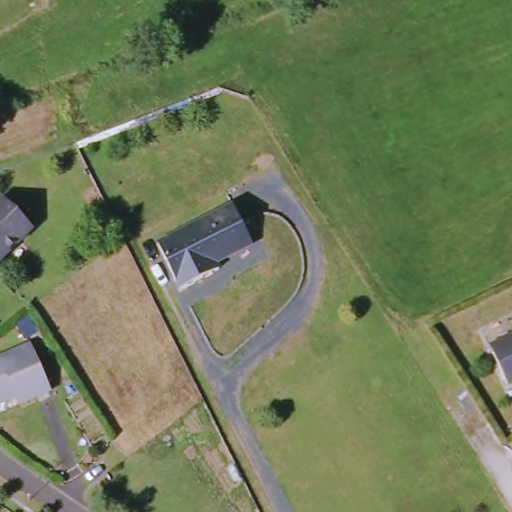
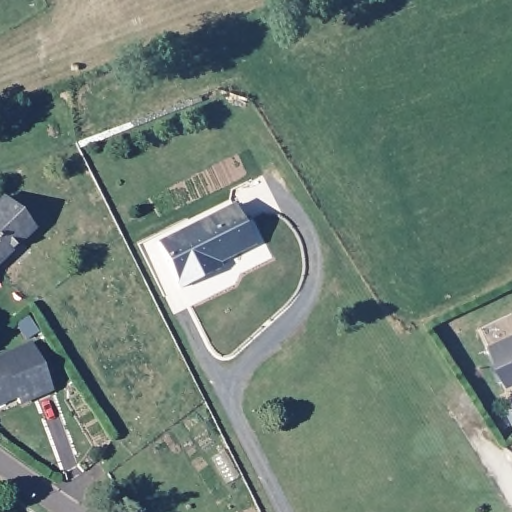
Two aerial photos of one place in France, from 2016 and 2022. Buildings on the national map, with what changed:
unchanged [(5,193),(33,222),(0,255),(0,198),(5,193)]
unchanged [(233,211),(246,244),(206,258),(208,272),(172,286),(156,238),(233,211)]
unchanged [(512,387),(509,388),(493,346),(512,338),(512,387)]
unchanged [(35,344),(56,390),(23,405),(19,400),(0,408),(0,360),(35,344)]

